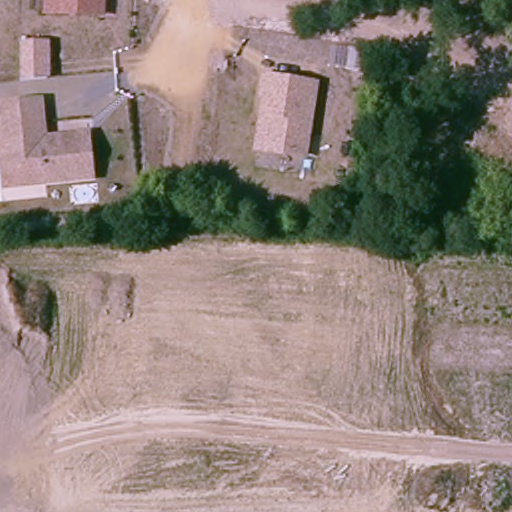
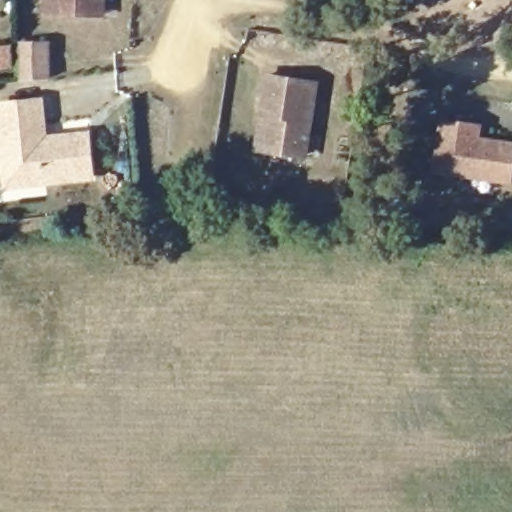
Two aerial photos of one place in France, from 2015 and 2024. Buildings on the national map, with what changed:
unchanged [(45,15),(45,0),(102,0),(102,16),(96,16),(45,15)]
unchanged [(47,42),(47,76),(20,79),(19,43),(47,42)]
unchanged [(268,95),(264,94),(267,75),(317,82),(306,152),(267,147),(260,146),(266,111),(268,95)]
unchanged [(5,171),(0,126),(0,103),(40,99),(45,137),(87,132),(92,174),(47,180),(7,185),(5,171)]
new [(442,118),(483,126),(481,137),(512,142),(512,187),(433,172),(442,118)]

